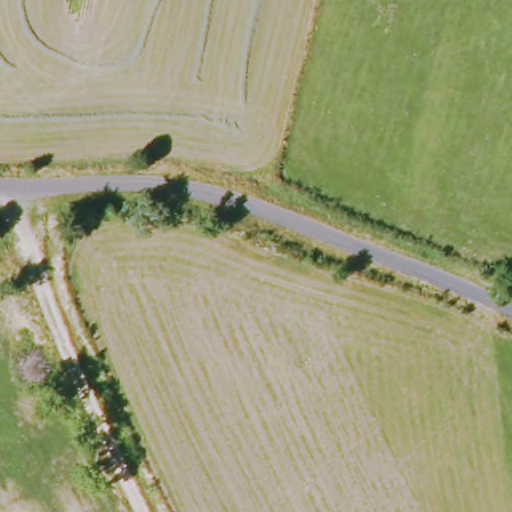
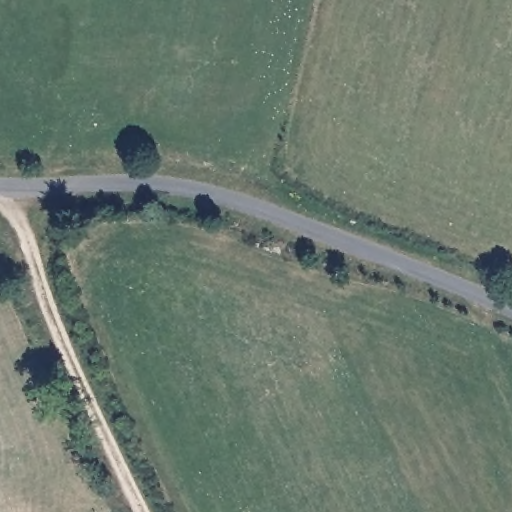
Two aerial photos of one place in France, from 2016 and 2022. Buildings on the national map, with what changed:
[]

